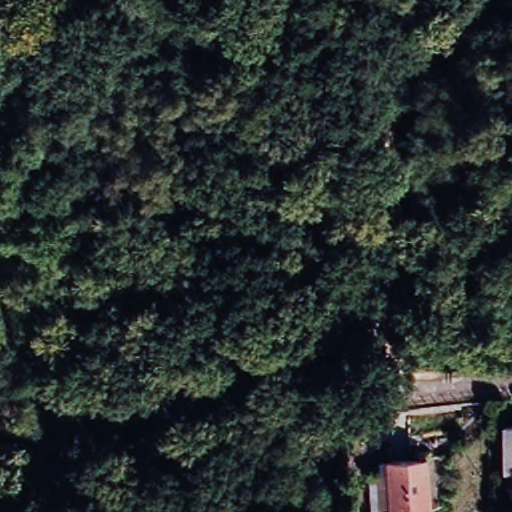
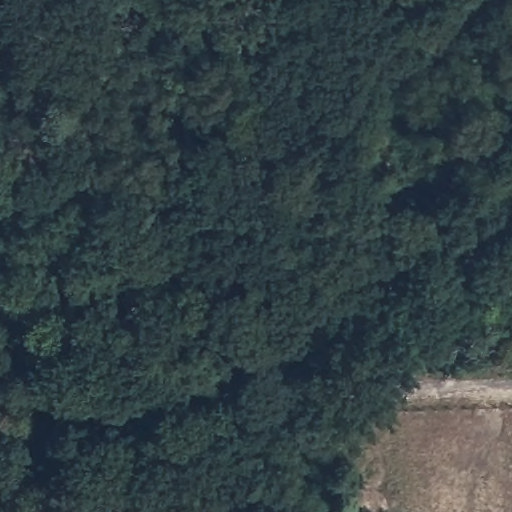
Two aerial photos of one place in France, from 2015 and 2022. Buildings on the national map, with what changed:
demolished [(505,425),(512,425),(512,467),(505,467),(505,425)]
demolished [(384,474),(384,462),(418,461),(418,468),(428,468),(429,510),(407,510),(407,512),(380,512),(379,474),(384,474)]

